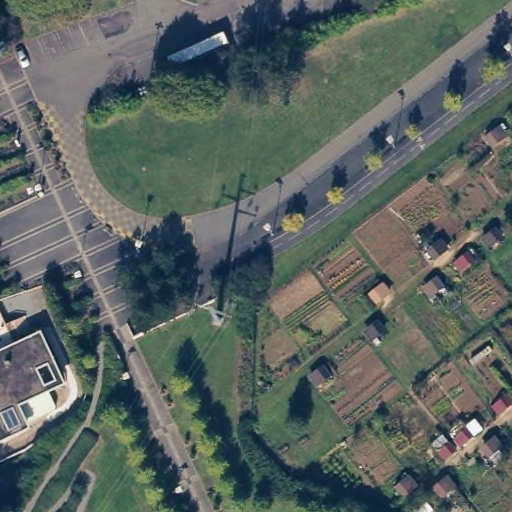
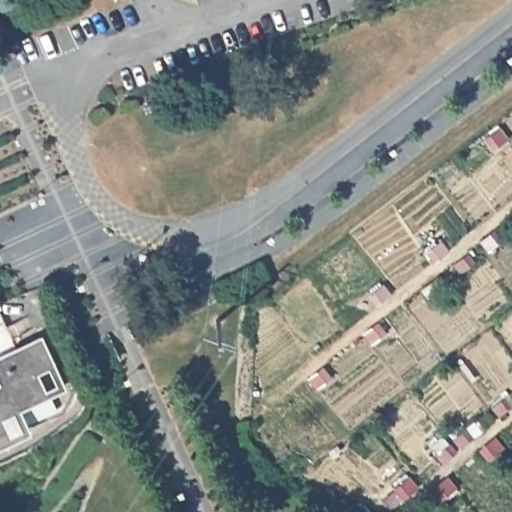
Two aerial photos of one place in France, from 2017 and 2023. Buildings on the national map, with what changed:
unchanged [(6,297),(0,301),(0,285),(6,297)]
unchanged [(16,344),(48,331),(70,380),(25,403),(31,419),(0,438),(0,312),(16,344)]

